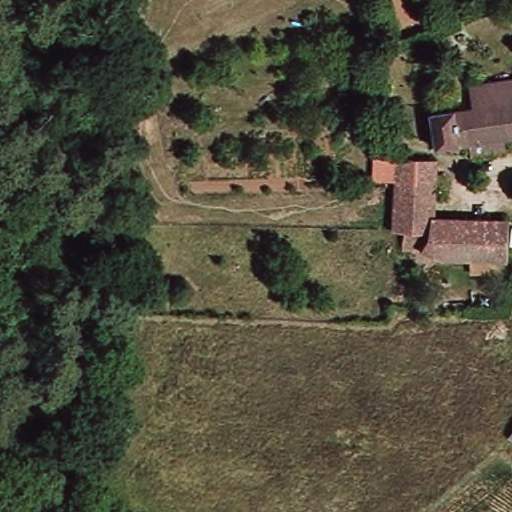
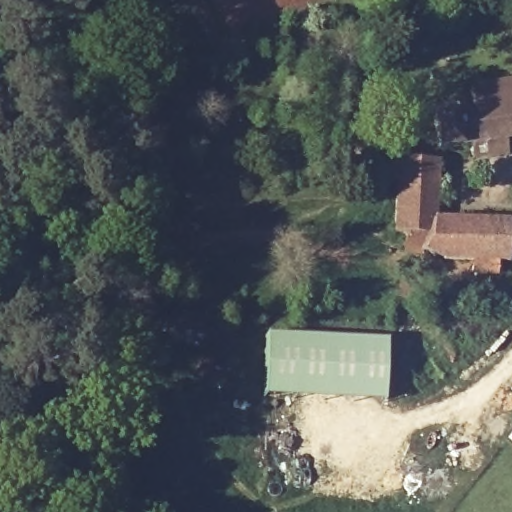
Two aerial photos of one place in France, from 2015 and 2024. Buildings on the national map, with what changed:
unchanged [(471,145),(438,149),(433,115),(474,109),(472,87),(512,82),(512,140),(503,141),(505,158),(474,162),(471,145)]
unchanged [(437,164),(435,223),(510,226),(508,262),(494,262),(493,279),(472,277),(473,262),(430,258),(431,253),(391,250),(400,162),(437,164)]
new [(384,401),(263,396),(267,334),(387,340),(384,401)]
unchanged [(512,432),(512,440),(509,437),(512,432)]

